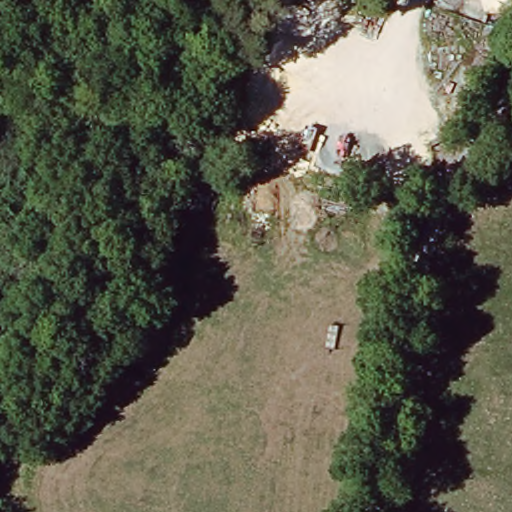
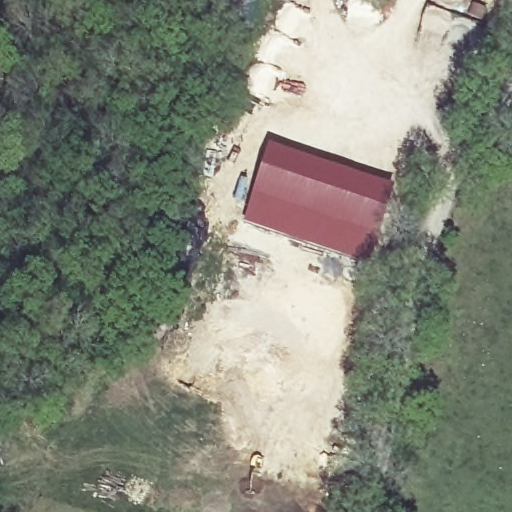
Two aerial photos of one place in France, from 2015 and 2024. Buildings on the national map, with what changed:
new [(210,15),(215,0),(259,0),(250,27),(210,15)]
new [(284,0),(290,0),(289,1),(284,0)]
new [(266,145),(394,186),(370,265),(241,225),(266,145)]
unchanged [(198,162),(221,169),(187,264),(166,255),(198,162)]

